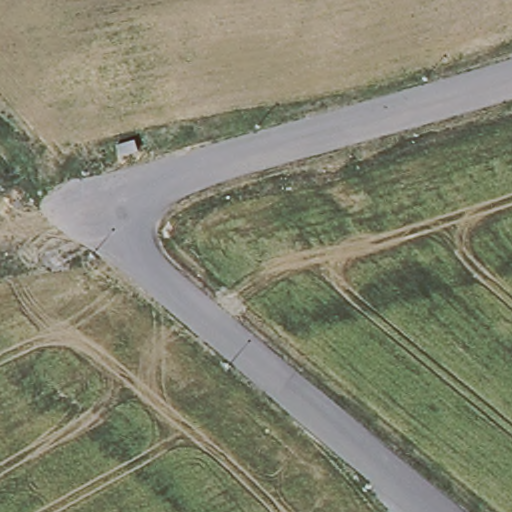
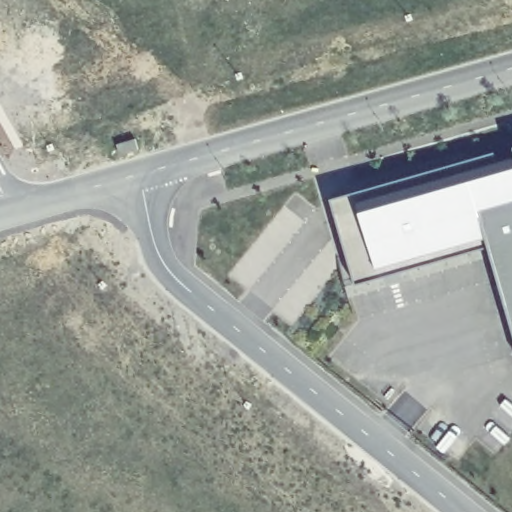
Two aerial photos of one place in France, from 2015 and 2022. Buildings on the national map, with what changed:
new [(116,144),(135,139),(138,149),(119,155),(116,144)]
new [(333,196),(495,151),(498,161),(512,158),(512,330),(488,246),(356,284),(333,196)]

